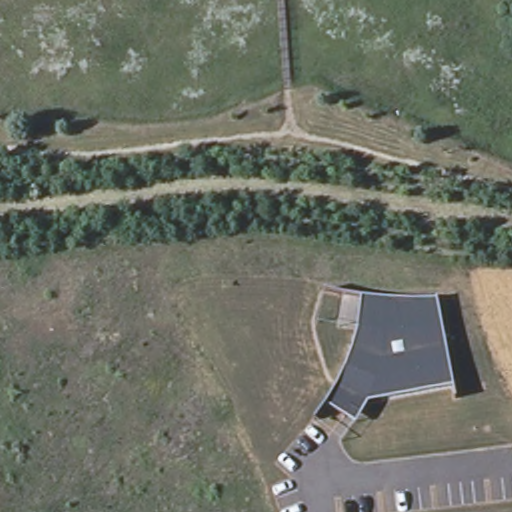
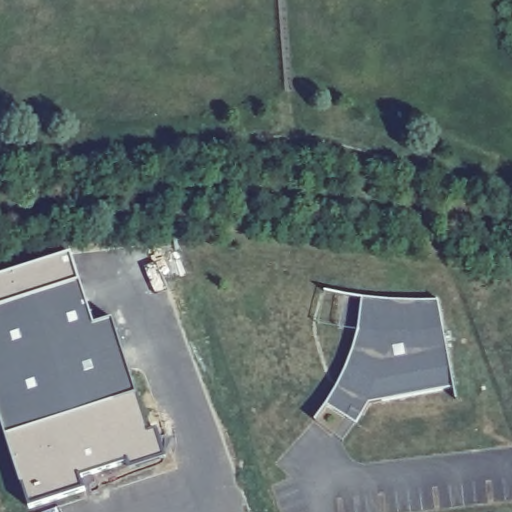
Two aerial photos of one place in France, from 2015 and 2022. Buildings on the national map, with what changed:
new [(163,457),(131,469),(128,461),(78,477),(82,491),(30,507),(0,413),(0,278),(71,257),(94,326),(112,322),(148,435),(156,432),(163,457)]
unchanged [(349,362),(360,332),(363,298),(405,301),(440,301),(455,387),(370,402),(357,424),(328,404),(349,362)]

